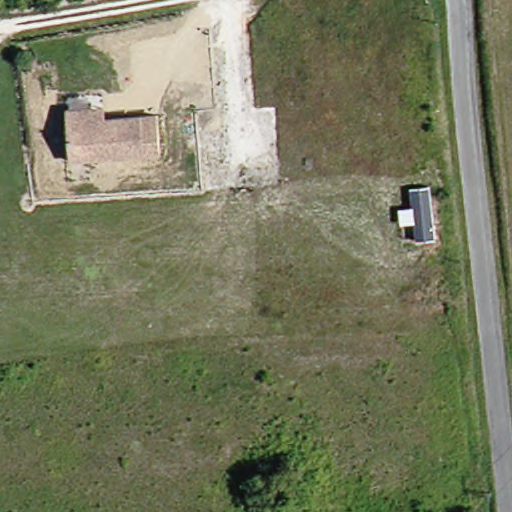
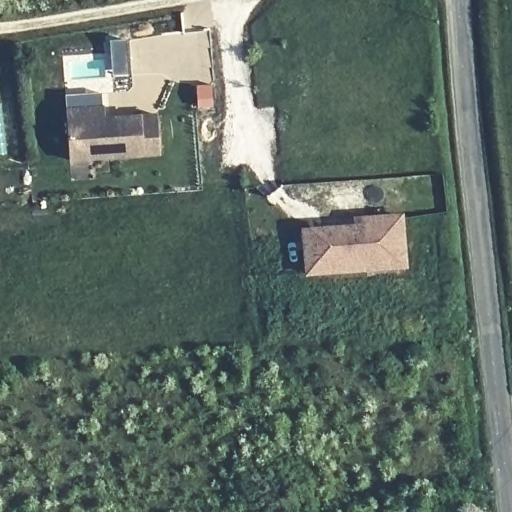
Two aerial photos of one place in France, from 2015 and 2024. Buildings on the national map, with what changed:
unchanged [(56,113),(83,112),(85,123),(148,119),(149,157),(59,163),(56,113)]
new [(407,270),(303,278),(299,228),(355,225),(353,217),(402,214),(407,270)]

